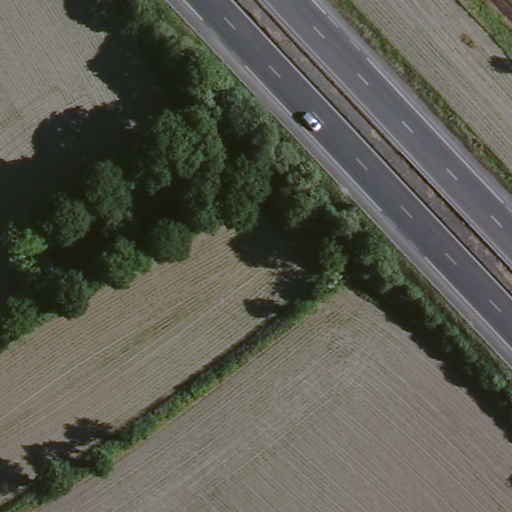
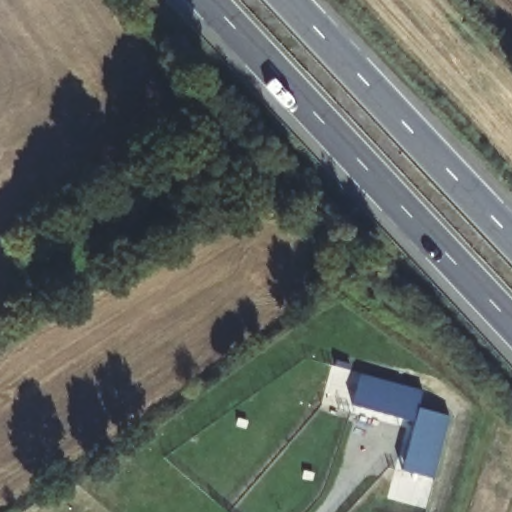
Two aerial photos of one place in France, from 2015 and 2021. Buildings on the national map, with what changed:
new [(361,373),(424,389),(419,408),(449,415),(433,481),(403,472),(415,422),(353,407),(361,373)]

